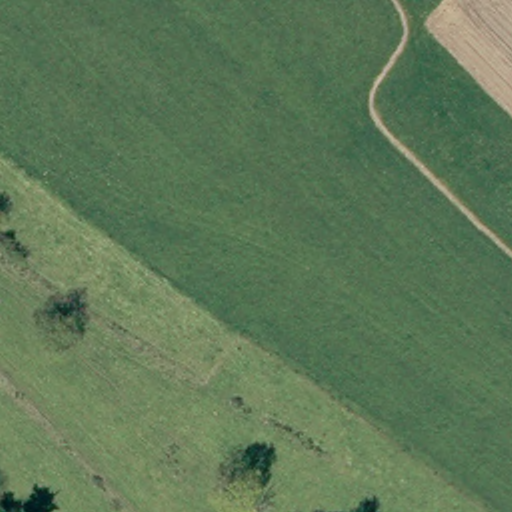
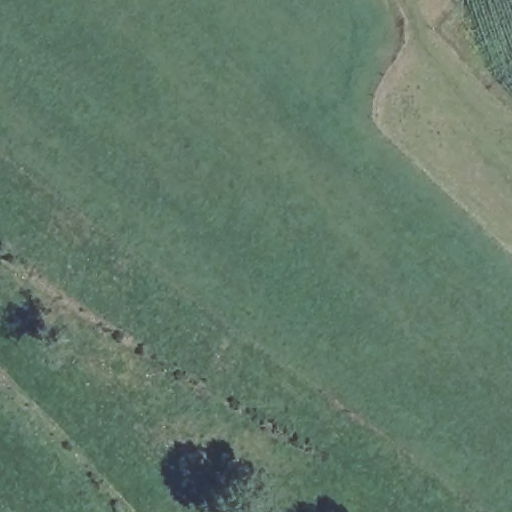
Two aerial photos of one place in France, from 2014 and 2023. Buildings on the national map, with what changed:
[]

